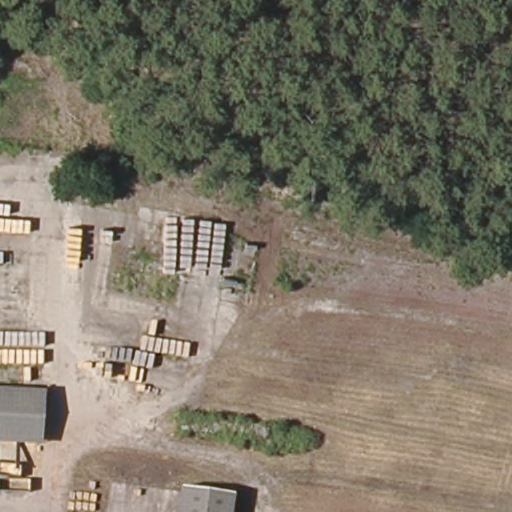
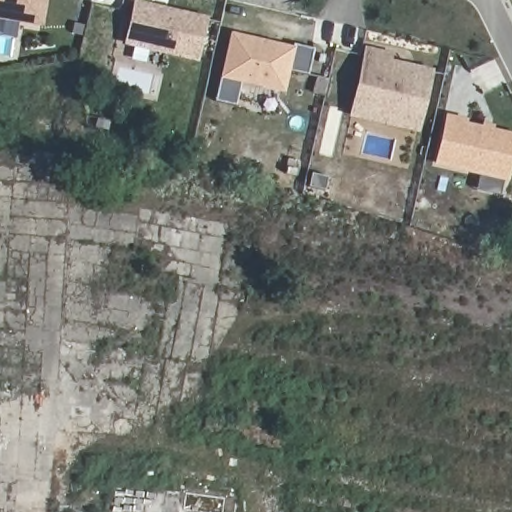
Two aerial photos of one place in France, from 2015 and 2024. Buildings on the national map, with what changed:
new [(34,20),(0,15),(0,0),(37,0),(34,20)]
new [(130,1),(200,17),(190,56),(121,40),(130,1)]
new [(226,32),(286,46),(276,86),(217,72),(226,32)]
new [(361,48),(384,54),(382,60),(425,69),(415,112),(350,99),(361,48)]
new [(350,99),(415,112),(412,128),(346,114),(350,99)]
new [(463,121),(462,125),(512,136),(512,145),(504,179),(435,163),(445,117),(463,121)]
unchanged [(45,393),(40,447),(0,444),(0,391),(45,393)]
unchanged [(177,512),(180,490),(234,496),(231,512),(177,512)]

